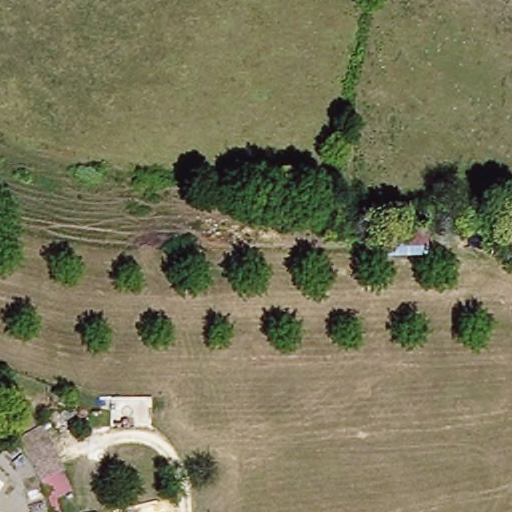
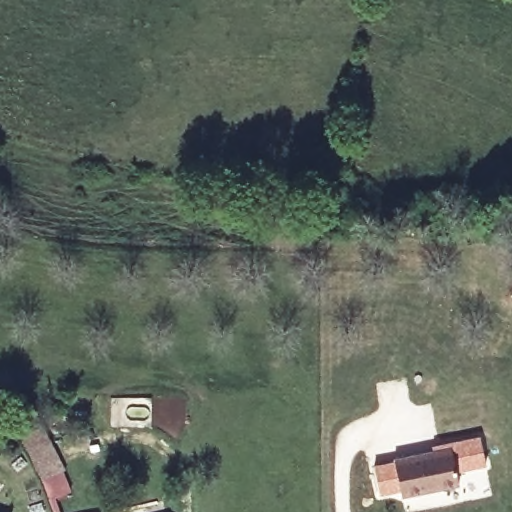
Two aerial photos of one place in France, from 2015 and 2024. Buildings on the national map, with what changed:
unchanged [(32,487),(10,441),(37,428),(58,473),(32,487)]
new [(485,465),(456,472),(458,485),(402,498),(400,491),(381,495),(376,467),(394,464),(394,460),(449,449),(449,443),(481,437),(485,465)]

